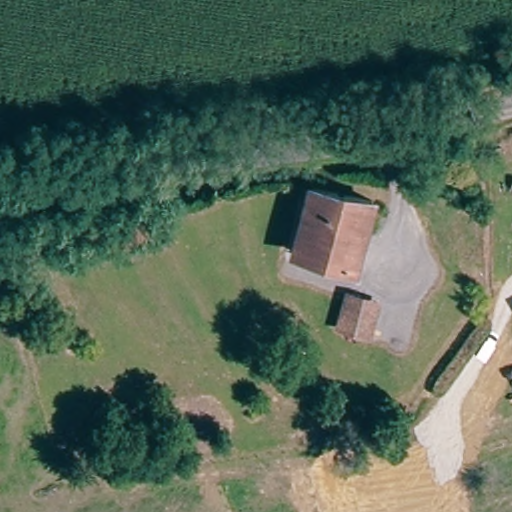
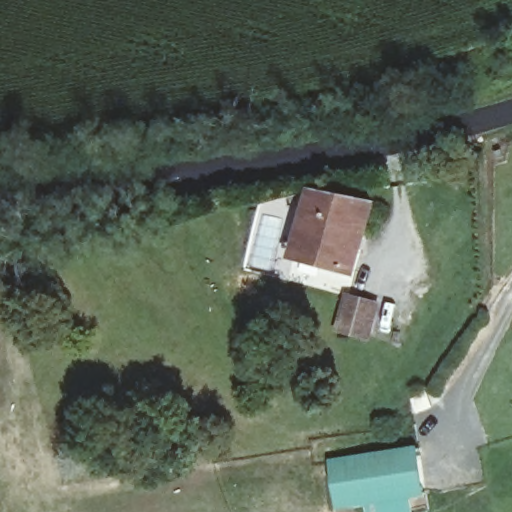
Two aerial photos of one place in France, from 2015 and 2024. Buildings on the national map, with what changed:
unchanged [(292,257),(304,194),(365,206),(353,269),(292,257)]
unchanged [(333,336),(335,329),(341,298),(372,304),(366,336),(362,335),(360,341),(333,336)]
new [(368,507),(340,511),(332,462),(420,447),(429,498),(414,501),(416,512),(369,512),(368,507)]

